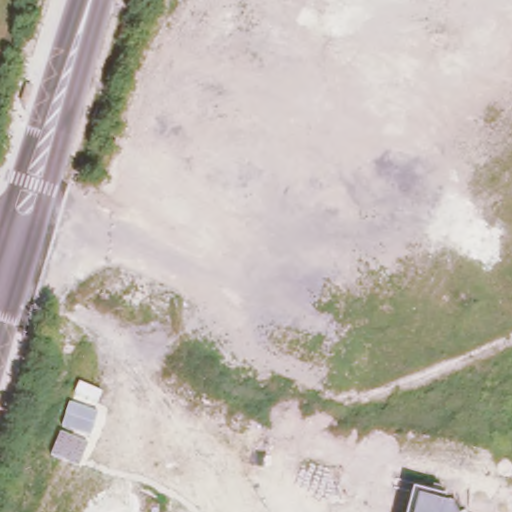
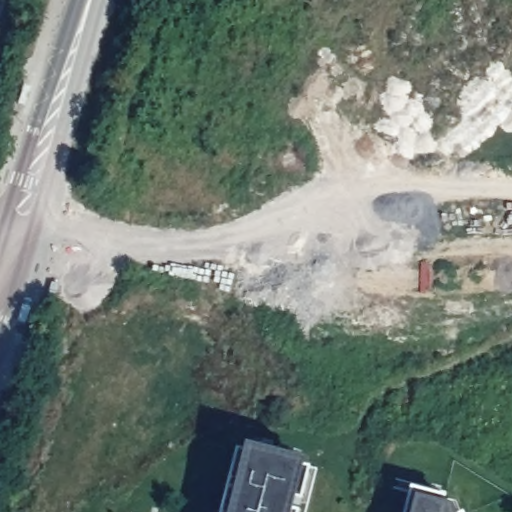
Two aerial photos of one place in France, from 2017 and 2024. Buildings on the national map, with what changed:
new [(305,467),(312,468),(303,501),(296,499),(293,510),(300,512),(220,512),(238,448),(305,467)]
unchanged [(443,500),(440,507),(450,509),(451,512),(406,512),(411,493),(443,500)]

